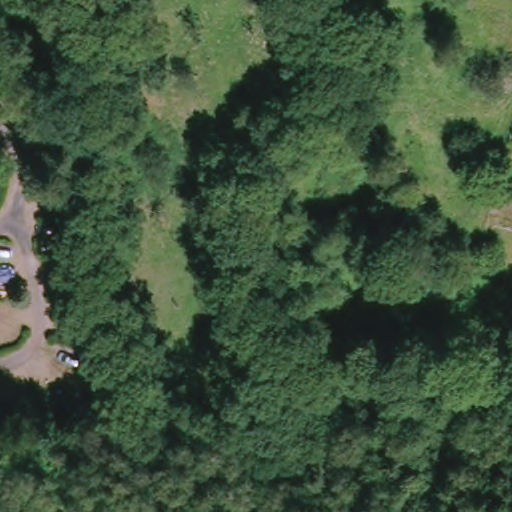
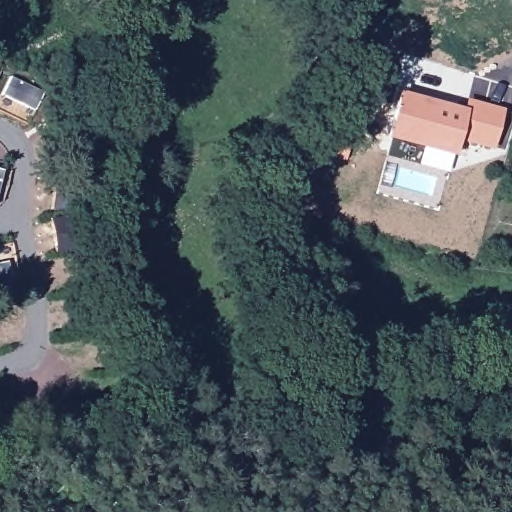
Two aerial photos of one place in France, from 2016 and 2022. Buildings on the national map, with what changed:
new [(468,97),(510,107),(498,152),(465,144),(461,158),(392,139),(405,91),(466,107),(468,97)]

